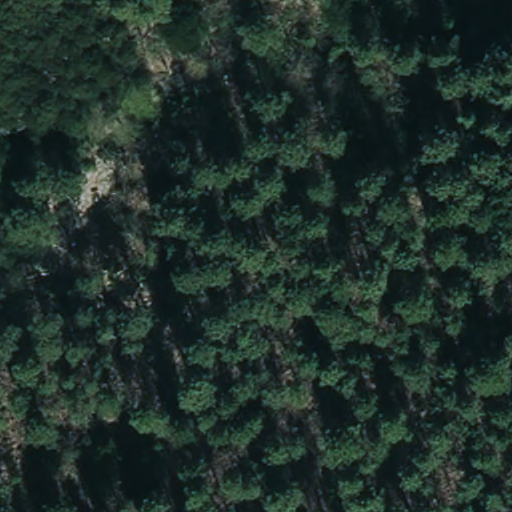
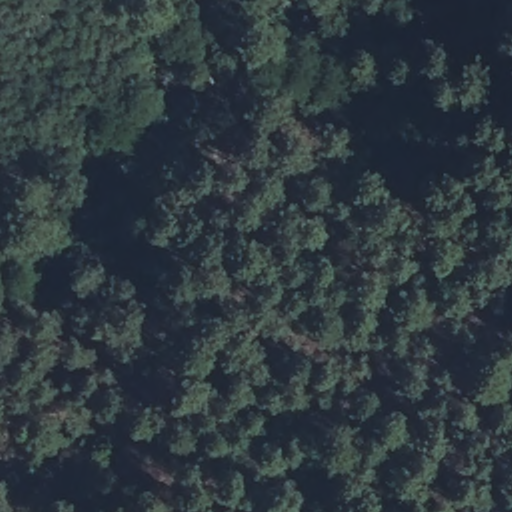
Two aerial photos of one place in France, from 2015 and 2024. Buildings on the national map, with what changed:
[]

